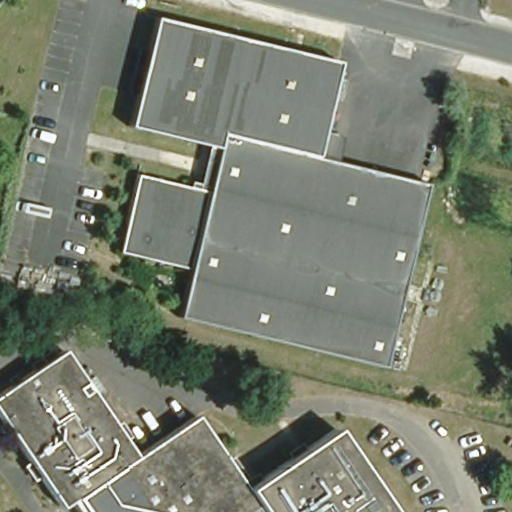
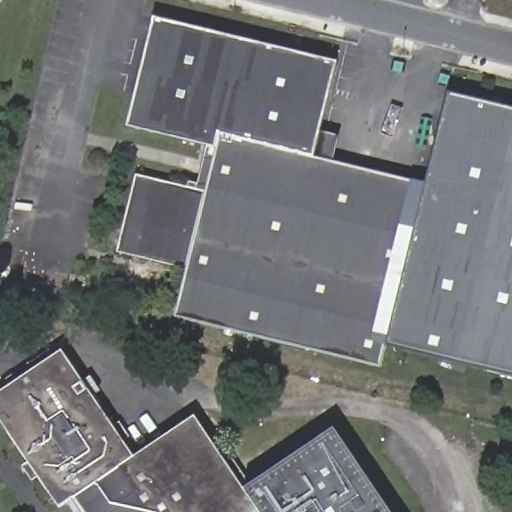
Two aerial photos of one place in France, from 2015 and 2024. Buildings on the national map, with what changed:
unchanged [(137,168),(209,185),(217,145),(219,141),(129,119),(154,14),(337,57),(315,154),(346,161),(425,180),(387,336),(385,345),(383,354),(381,361),(178,312),(184,287),(189,265),(119,249),(137,168)]
new [(425,180),(447,93),(512,108),(512,377),(385,345),(387,336),(425,180)]
unchanged [(62,507),(0,412),(0,395),(67,350),(138,455),(200,414),(250,489),(260,505),(248,512),(84,512),(75,498),(62,507)]
unchanged [(398,512),(265,512),(260,505),(250,489),(341,427),(398,512)]

